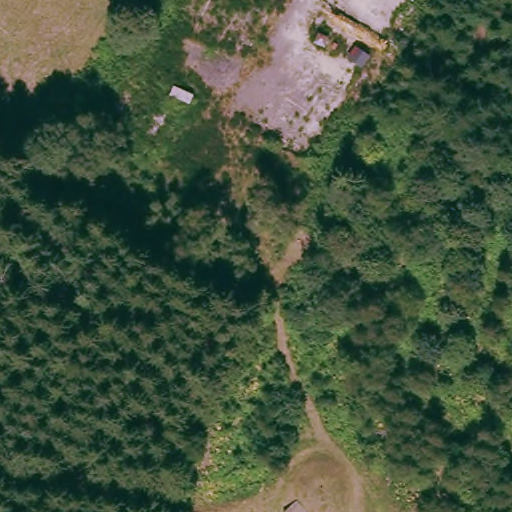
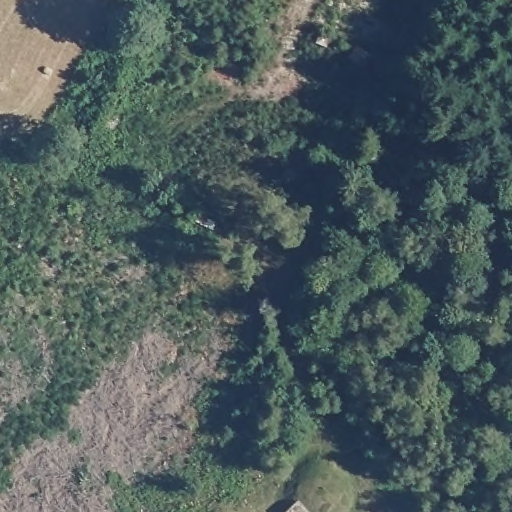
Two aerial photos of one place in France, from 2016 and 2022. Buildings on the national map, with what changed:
[]

